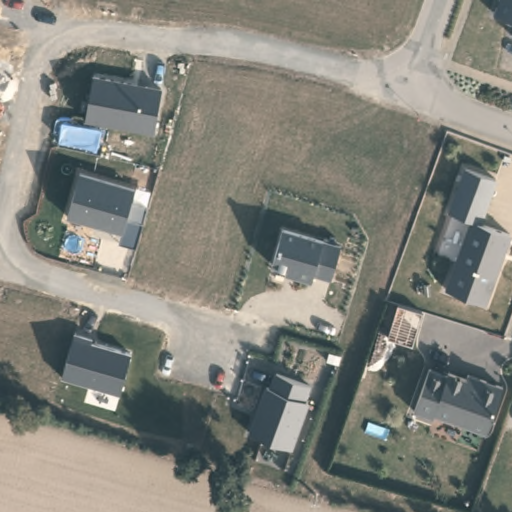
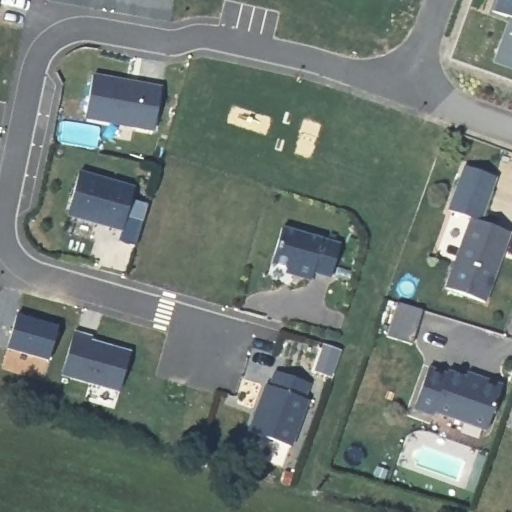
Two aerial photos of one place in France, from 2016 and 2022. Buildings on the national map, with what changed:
unchanged [(493,11),(498,0),(512,0),(512,18),(493,11)]
unchanged [(512,33),(512,35),(511,35),(512,33)]
unchanged [(154,130),(86,118),(92,75),(161,85),(154,130)]
unchanged [(493,175),(476,220),(471,218),(445,210),(460,165),(493,175)]
unchanged [(134,244),(119,240),(121,231),(67,217),(84,173),(133,186),(130,200),(146,202),(134,244)]
unchanged [(446,287),(471,218),(476,220),(510,232),(485,302),(446,287)]
unchanged [(329,276),(312,274),(310,281),(286,275),(286,267),(272,264),(283,227),(338,242),(329,276)]
unchanged [(411,341),(387,335),(396,300),(420,307),(411,341)]
new [(47,361),(4,348),(14,312),(57,326),(47,361)]
unchanged [(120,390),(61,374),(75,329),(91,333),(89,340),(129,350),(120,390)]
unchanged [(486,430),(435,411),(433,415),(414,408),(429,366),(446,373),(447,370),(478,381),(480,376),(502,385),(486,430)]
unchanged [(246,428),(263,381),(270,383),(273,371),(310,383),(305,399),(307,400),(289,447),(246,428)]

